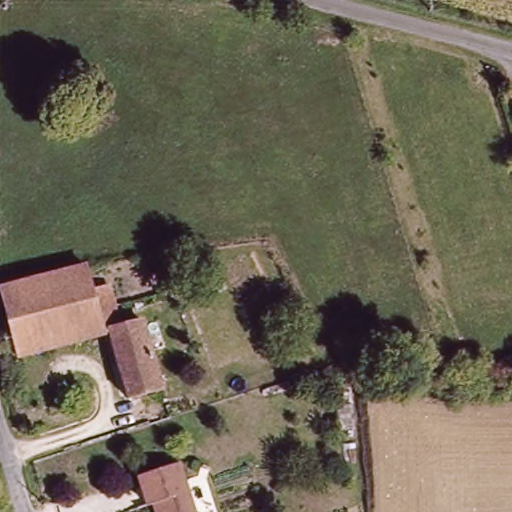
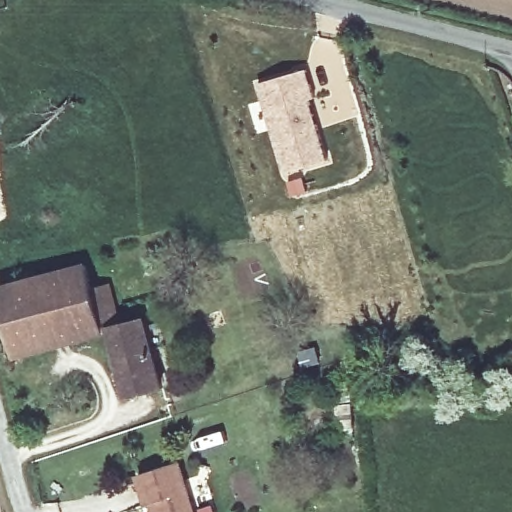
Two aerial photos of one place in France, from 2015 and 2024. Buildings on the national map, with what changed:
new [(313,99),(307,100),(312,115),(316,124),(328,160),(287,174),(257,86),(303,71),(313,99)]
unchanged [(128,401),(113,341),(22,363),(7,300),(98,274),(104,296),(118,293),(119,299),(127,327),(145,322),(166,388),(128,401)]
unchanged [(157,508),(153,509),(145,477),(183,468),(196,512),(158,512),(157,508)]

